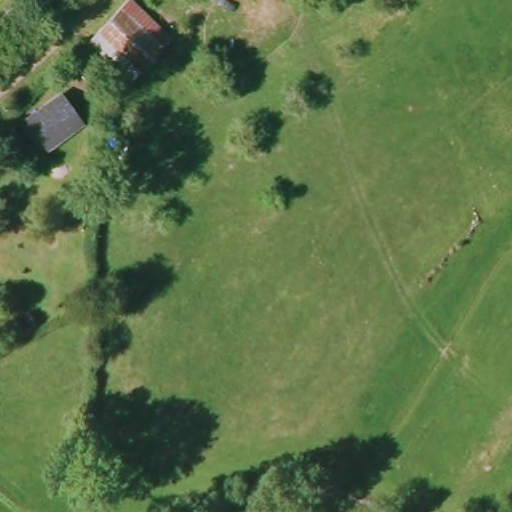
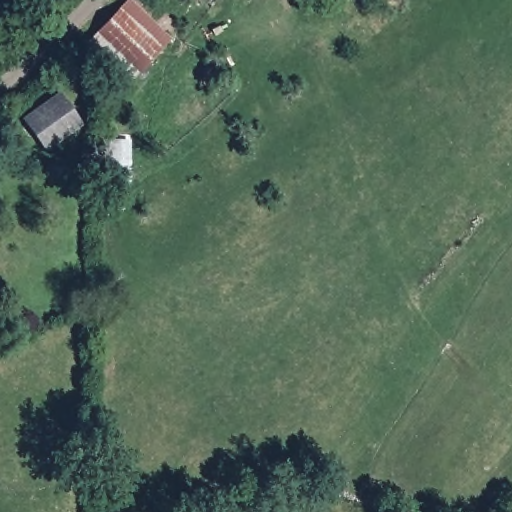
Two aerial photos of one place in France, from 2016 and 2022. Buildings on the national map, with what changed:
unchanged [(129,0),(168,38),(128,81),(88,42),(127,0),(129,0)]
unchanged [(207,0),(210,0),(209,2),(207,0)]
unchanged [(23,117),(58,94),(78,124),(43,147),(23,117)]

